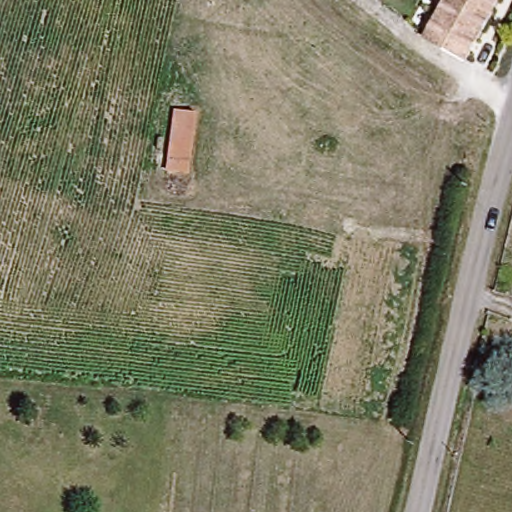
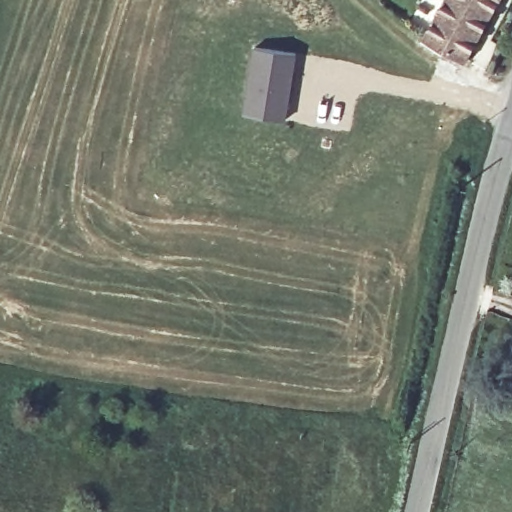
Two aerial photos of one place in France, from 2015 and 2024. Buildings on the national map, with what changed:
unchanged [(500,0),(471,62),(429,41),(448,0),(500,0)]
new [(250,45),(297,52),(285,121),(240,113),(250,45)]
demolished [(201,112),(192,172),(170,170),(180,109),(201,112)]

